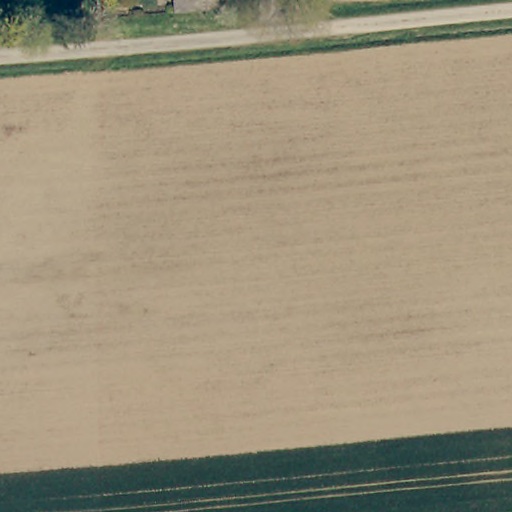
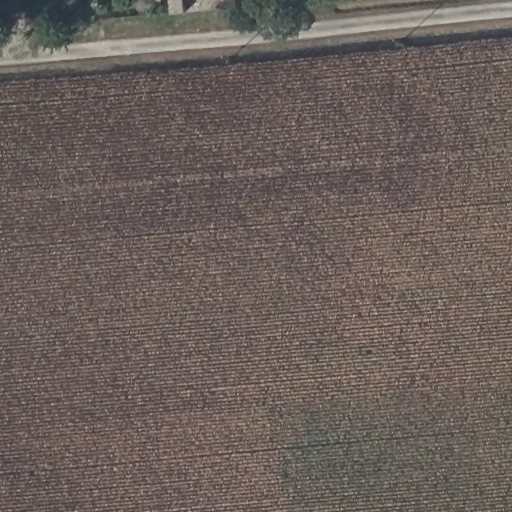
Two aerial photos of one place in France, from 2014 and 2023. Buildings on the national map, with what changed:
unchanged [(251,6),(174,14),(172,0),(251,0),(251,6)]

